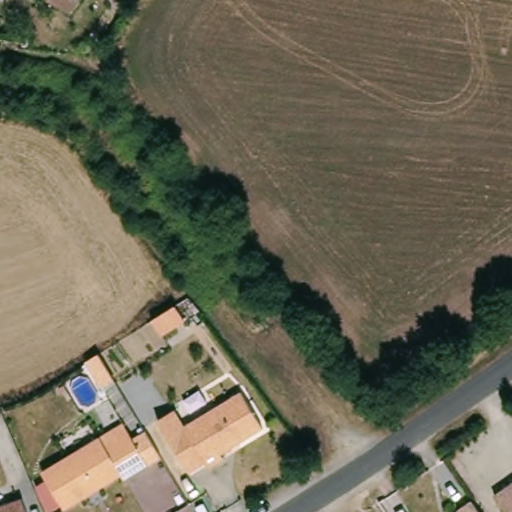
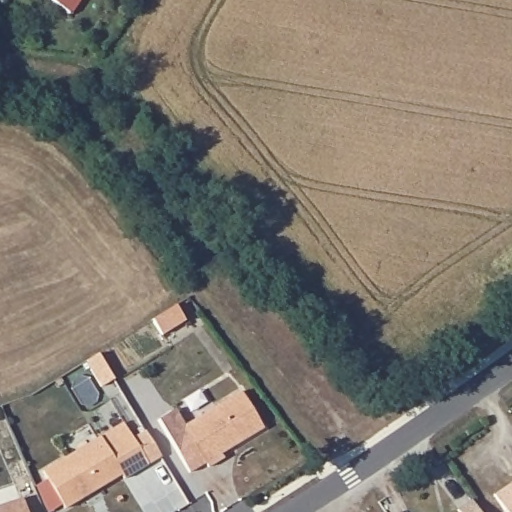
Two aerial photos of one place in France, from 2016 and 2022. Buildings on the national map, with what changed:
unchanged [(76,14),(55,0),(85,0),(76,14)]
unchanged [(175,305),(185,320),(162,335),(152,320),(175,305)]
unchanged [(94,376),(104,392),(93,399),(83,383),(94,376)]
unchanged [(200,421),(256,386),(278,423),(235,449),(237,453),(223,462),(221,458),(199,421),(200,421)]
unchanged [(204,467),(172,415),(190,405),(200,421),(199,421),(221,458),(204,467)]
unchanged [(63,512),(42,476),(100,441),(104,448),(127,435),(147,469),(124,483),(121,479),(97,493),(86,500),(66,512),(63,512)]
unchanged [(512,488),(512,512),(503,512),(495,500),(512,488)]
unchanged [(471,498),(480,512),(459,512),(457,508),(471,498)]
unchanged [(27,512),(0,512),(0,507),(22,499),(27,512)]

